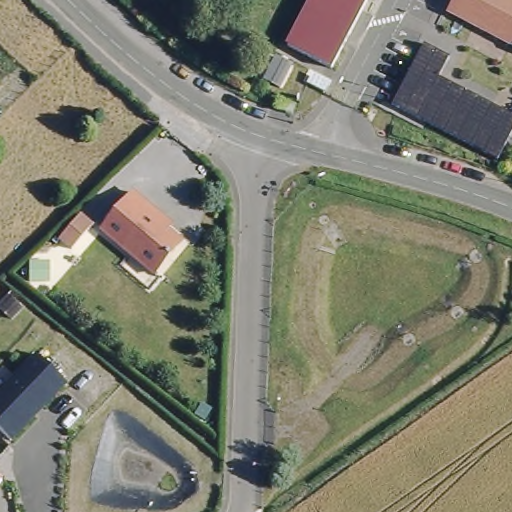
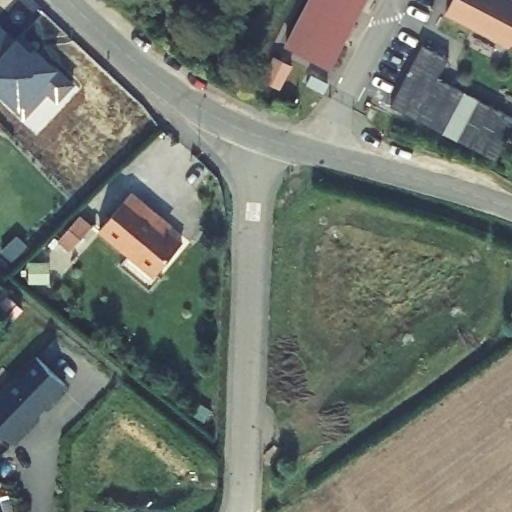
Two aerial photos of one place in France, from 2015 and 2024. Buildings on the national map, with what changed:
unchanged [(332,69),(288,46),(312,0),(368,0),(332,69)]
unchanged [(451,8),(455,0),(512,0),(512,39),(451,8)]
new [(77,81),(60,101),(49,92),(28,116),(0,92),(0,21),(18,34),(77,81)]
unchanged [(453,55),(443,75),(512,110),(512,133),(500,157),(395,104),(426,41),(453,55)]
unchanged [(100,224),(130,188),(152,206),(149,211),(181,239),(155,271),(100,224)]
unchanged [(80,213),(94,224),(71,251),(57,239),(80,213)]
unchanged [(40,408),(39,406),(32,413),(33,415),(8,441),(0,433),(0,392),(36,355),(65,383),(40,408)]

